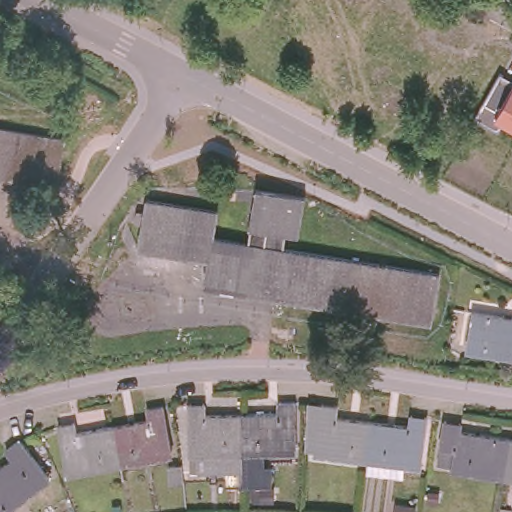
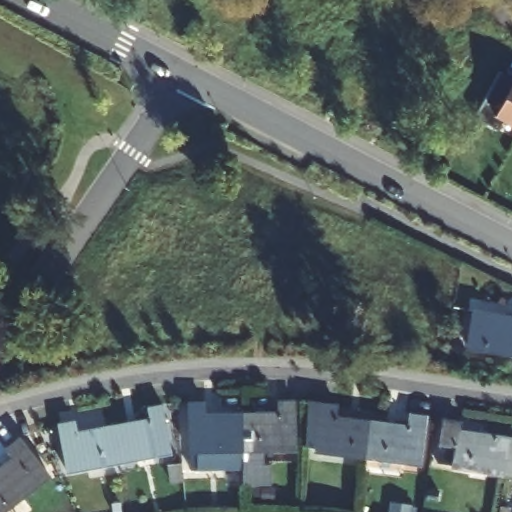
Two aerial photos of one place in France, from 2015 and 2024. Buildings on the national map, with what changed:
unchanged [(502,120),(497,129),(476,116),(502,73),(512,77),(512,126),(502,120)]
demolished [(50,182),(0,174),(0,126),(58,136),(50,182)]
demolished [(256,184),(305,190),(296,251),(248,243),(256,184)]
demolished [(216,211),(213,237),(248,243),(296,251),(439,273),(431,318),(206,281),(210,254),(139,242),(146,200),(216,211)]
unchanged [(512,316),(512,353),(467,345),(473,310),(512,316)]
unchanged [(273,404),(273,395),(289,396),(291,442),(257,443),(258,458),(266,458),(266,477),(238,479),(238,462),(235,405),(273,404)]
unchanged [(188,464),(184,398),(201,397),(201,406),(235,405),(238,462),(188,464)]
unchanged [(304,397),(332,398),(331,405),(368,410),(363,450),(300,441),(304,397)]
unchanged [(111,421),(148,415),(146,407),(163,405),(171,451),(118,460),(111,421)]
unchanged [(368,410),(403,416),(404,409),(422,412),(414,457),(363,450),(368,410)]
unchanged [(66,470),(58,425),(75,420),(77,427),(111,421),(118,460),(66,470)]
unchanged [(438,462),(444,420),(462,422),(461,428),(511,435),(506,472),(438,462)]
unchanged [(511,435),(512,436),(512,473),(506,472),(511,435)]
unchanged [(3,448),(20,436),(46,475),(0,511),(0,462),(8,455),(3,448)]
unchanged [(171,483),(168,465),(181,463),(183,481),(171,483)]

